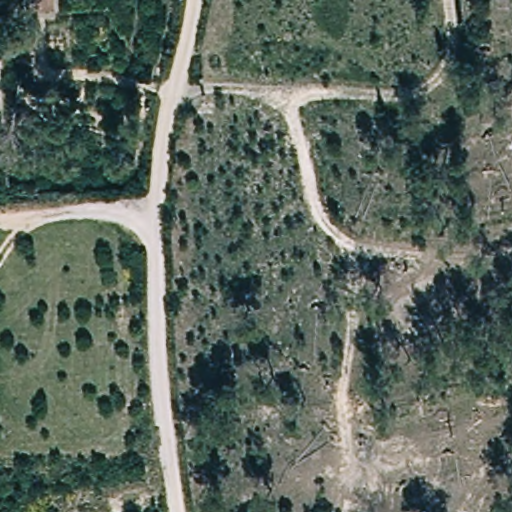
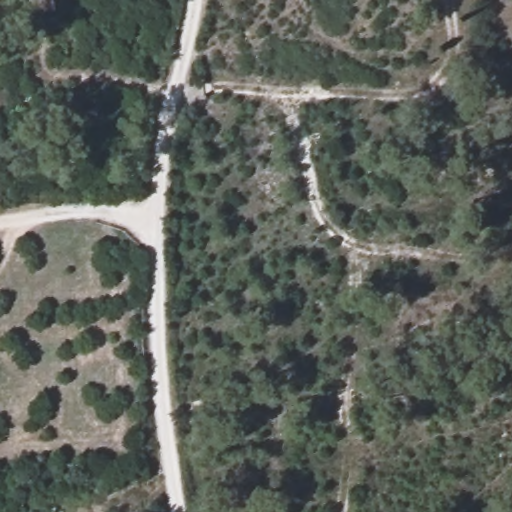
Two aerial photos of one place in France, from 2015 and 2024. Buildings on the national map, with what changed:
unchanged [(30,8),(30,0),(55,0),(55,8),(30,8)]

